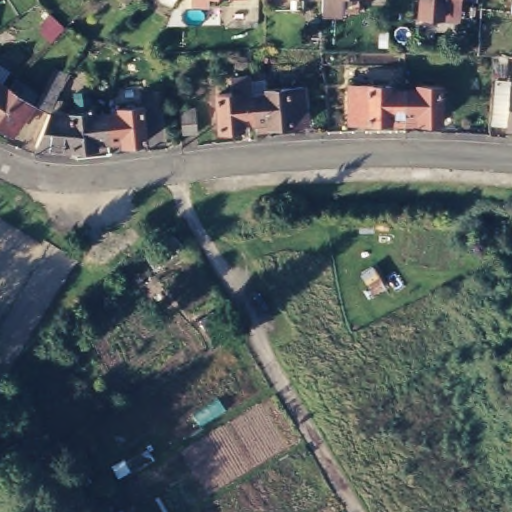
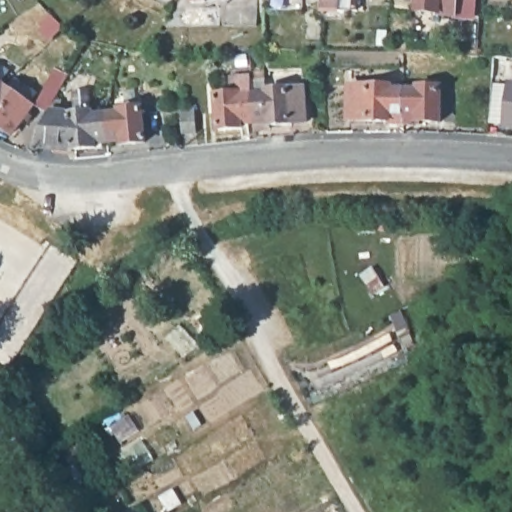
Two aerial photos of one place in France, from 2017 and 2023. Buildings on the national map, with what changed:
unchanged [(325,6),(307,6),(307,0),(344,0),(344,6),(325,6)]
unchanged [(432,1),(426,0),(442,0),(442,1),(432,1)]
unchanged [(57,35),(47,27),(50,24),(47,21),(52,13),(69,25),(57,35)]
unchanged [(499,56),(512,57),(510,79),(497,77),(499,56)]
unchanged [(10,72),(1,84),(2,85),(0,88),(0,64),(10,72)]
unchanged [(241,119),(242,123),(220,126),(216,91),(234,89),(232,74),(251,72),(251,66),(263,65),(264,74),(252,75),(253,91),(255,117),(241,119)]
unchanged [(96,147),(74,150),(37,146),(50,113),(35,106),(55,68),(67,75),(50,112),(70,114),(77,113),(75,94),(90,92),(92,112),(93,116),(107,114),(110,141),(95,142),(96,147)]
unchanged [(19,80),(27,86),(28,86),(39,94),(31,105),(32,106),(12,134),(0,125),(0,88),(2,85),(11,91),(19,80)]
unchanged [(385,120),(385,117),(345,116),(345,80),(387,81),(387,85),(400,85),(400,120),(385,120)]
unchanged [(400,85),(412,85),(412,81),(434,82),(434,117),(414,117),(414,120),(400,120),(400,85)]
unchanged [(255,117),(253,91),(267,89),(267,85),(304,82),(307,116),(270,120),(270,122),(256,124),(255,117)]
unchanged [(107,114),(120,112),(120,109),(143,107),(146,142),(124,145),(124,140),(110,141),(107,114)]
unchanged [(182,109),(195,107),(197,132),(183,134),(182,109)]
unchanged [(512,116),(512,126),(511,126),(512,116)]

